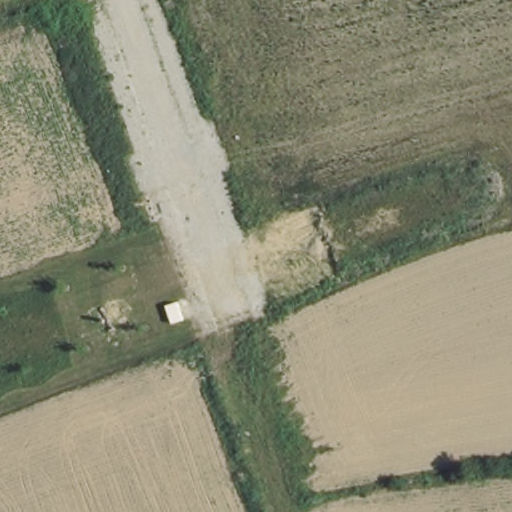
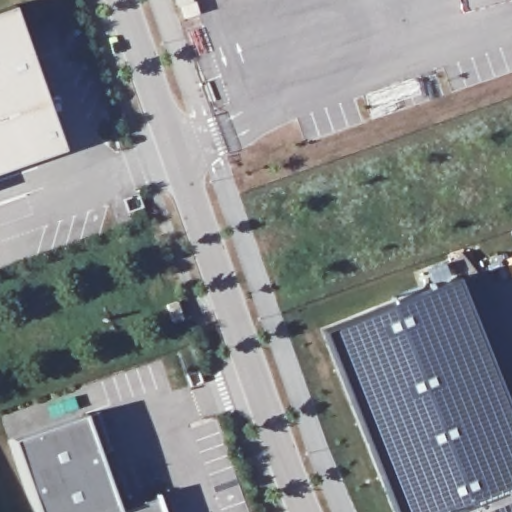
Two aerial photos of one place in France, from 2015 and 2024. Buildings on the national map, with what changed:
new [(60,153),(0,172),(0,13),(11,10),(60,153)]
new [(457,278),(470,274),(512,386),(512,512),(393,512),(322,332),(457,278)]
new [(111,454),(101,458),(117,512),(34,512),(10,444),(97,416),(111,454)]
new [(163,512),(122,512),(161,501),(163,512)]

